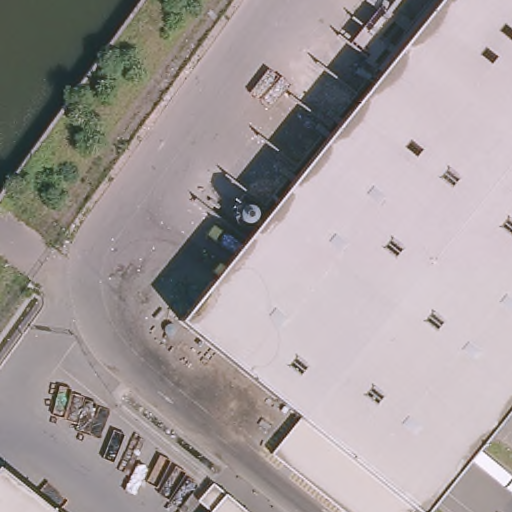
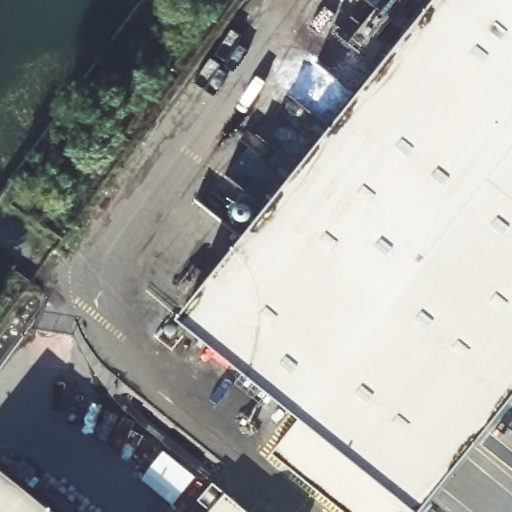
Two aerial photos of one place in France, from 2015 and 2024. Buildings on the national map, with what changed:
unchanged [(422,511),(414,504),(407,512),(351,512),(272,449),(301,413),(181,316),(435,0),(512,0),(512,399),(422,511)]
unchanged [(0,467),(56,512),(0,512),(0,467)]
unchanged [(212,512),(199,501),(214,483),(248,512),(211,512),(212,512)]

